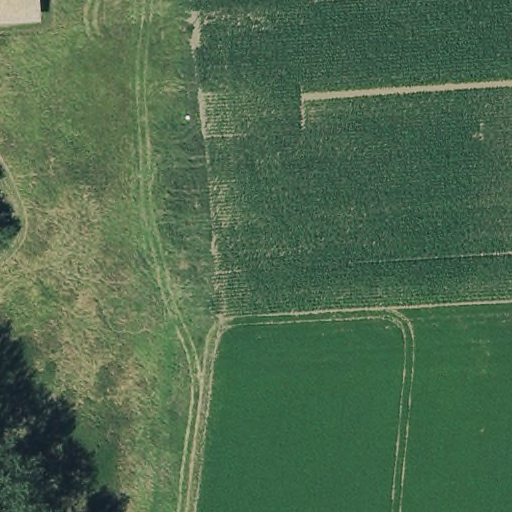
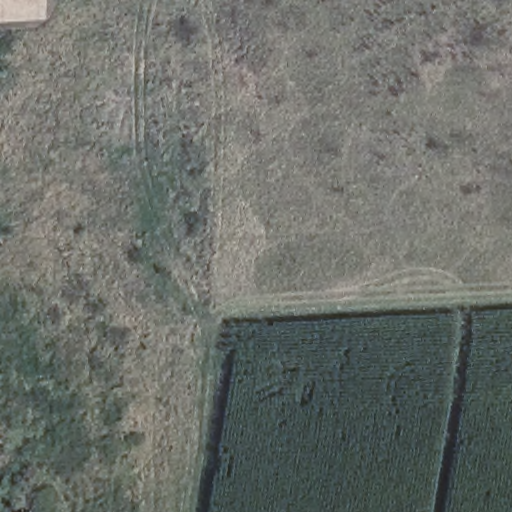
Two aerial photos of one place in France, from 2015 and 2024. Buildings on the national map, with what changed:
unchanged [(38,19),(0,23),(0,0),(37,0),(38,19)]

